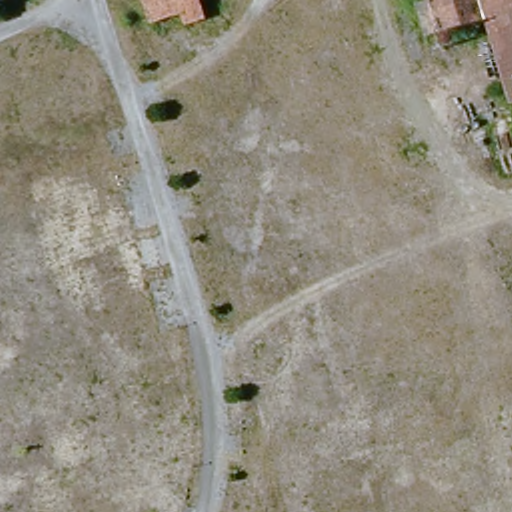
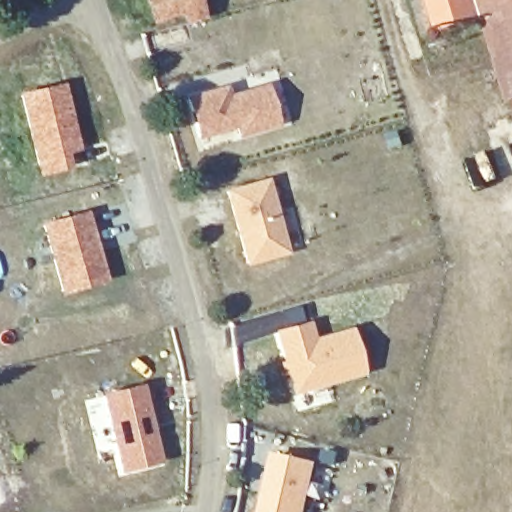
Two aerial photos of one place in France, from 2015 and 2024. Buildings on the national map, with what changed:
unchanged [(183,16),(151,25),(145,0),(201,0),(207,20),(186,26),(183,16)]
unchanged [(416,43),(408,21),(425,16),(420,0),(479,0),(486,22),(416,43)]
unchanged [(486,22),(479,0),(512,0),(512,110),(510,104),(486,22)]
new [(65,83),(81,151),(67,154),(70,169),(39,177),(19,93),(65,83)]
new [(228,90),(230,99),(270,88),(280,127),(242,138),(240,128),(200,139),(189,100),(228,90)]
new [(268,176),(290,254),(247,266),(225,189),(268,176)]
new [(89,211),(109,283),(62,296),(41,223),(89,211)]
new [(310,320),(315,337),(351,326),(365,372),(291,394),(274,330),(310,320)]
new [(142,384),(162,461),(120,472),(100,394),(142,384)]
new [(275,452),(317,464),(304,512),(259,512),(275,452)]

